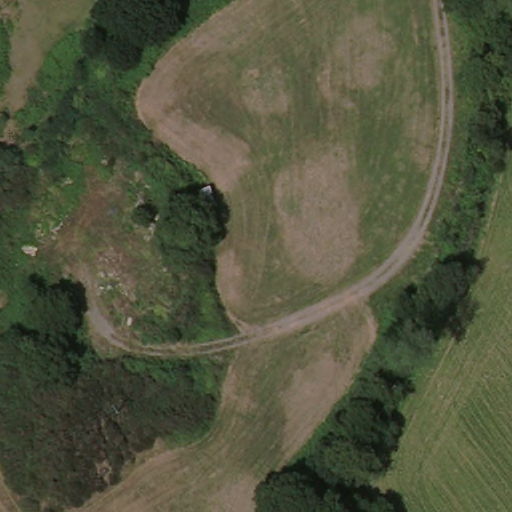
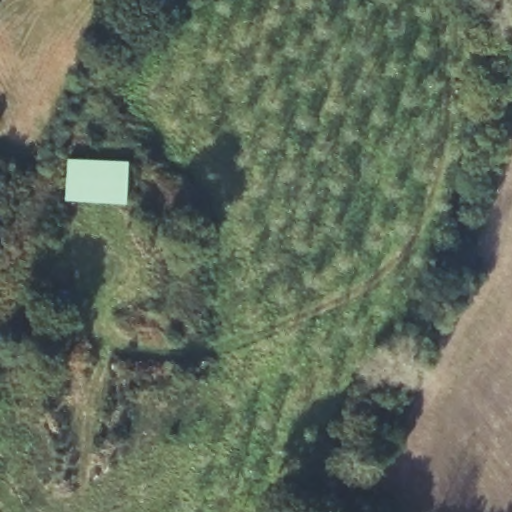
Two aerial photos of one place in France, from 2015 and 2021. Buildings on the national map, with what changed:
new [(69,157),(130,161),(129,202),(67,199),(69,157)]

